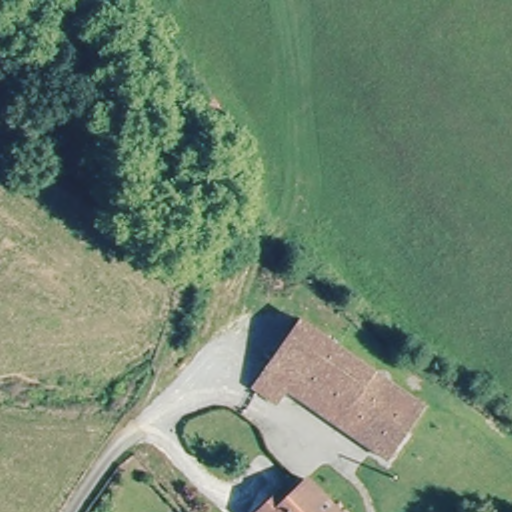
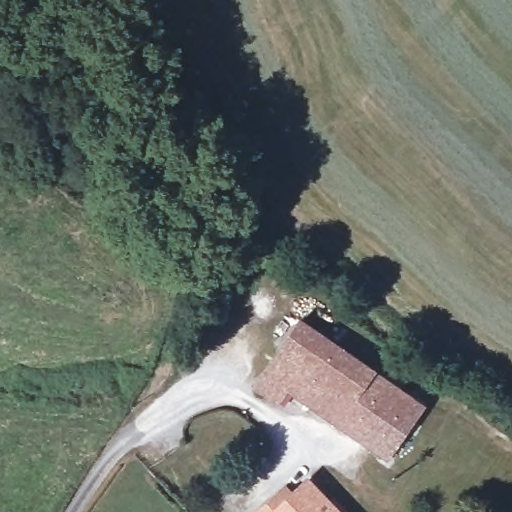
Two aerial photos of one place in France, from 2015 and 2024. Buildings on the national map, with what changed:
unchanged [(420,408),(381,461),(285,388),(274,403),(252,386),(296,330),(305,319),(310,323),(420,408)]
unchanged [(282,495),(289,489),(294,496),(313,480),(339,512),(263,512),(282,495)]
unchanged [(505,502),(512,510),(512,512),(493,512),(505,502)]

